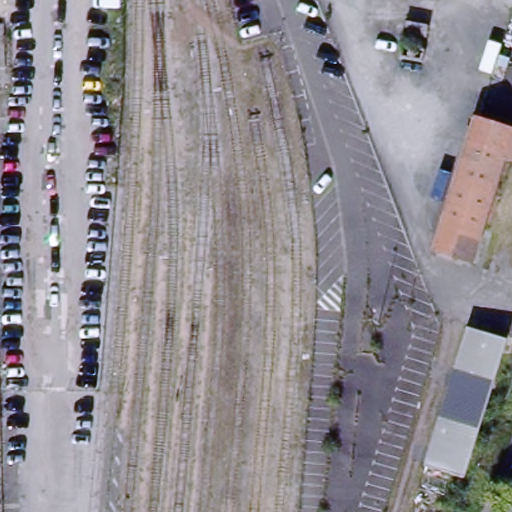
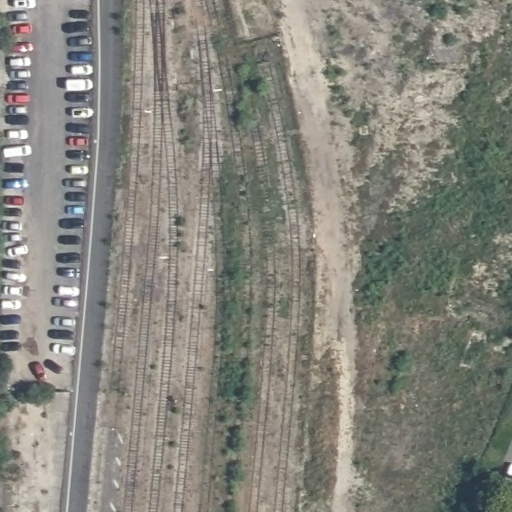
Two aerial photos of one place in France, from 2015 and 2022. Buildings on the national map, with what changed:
demolished [(473,119),(512,129),(512,161),(506,160),(473,264),(432,250),(473,119)]
demolished [(507,341),(467,476),(425,463),(467,326),(507,341)]

